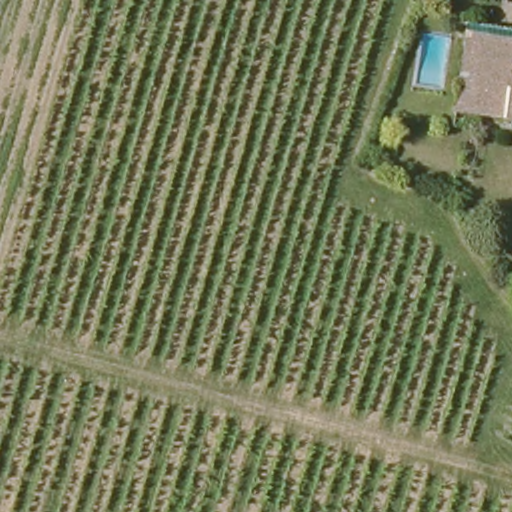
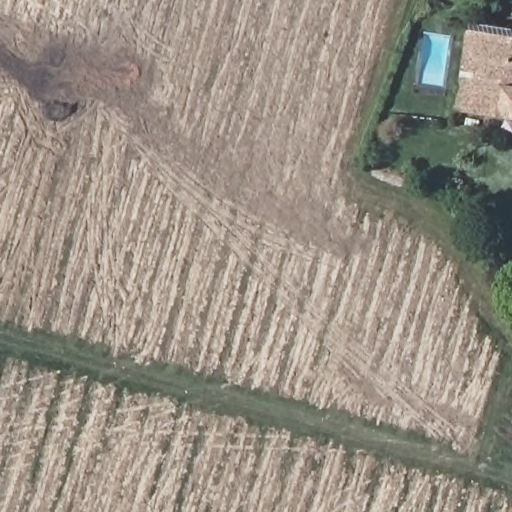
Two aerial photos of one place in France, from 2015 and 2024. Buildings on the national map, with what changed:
unchanged [(512,29),(512,118),(481,115),(490,51),(472,48),(475,26),(512,29)]
unchanged [(490,51),(481,115),(464,113),(472,48),(490,51)]

